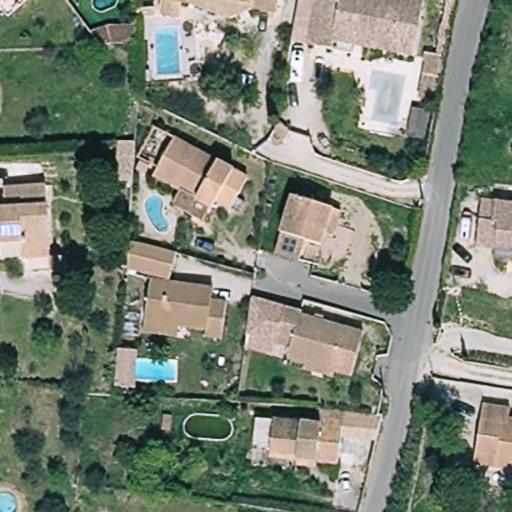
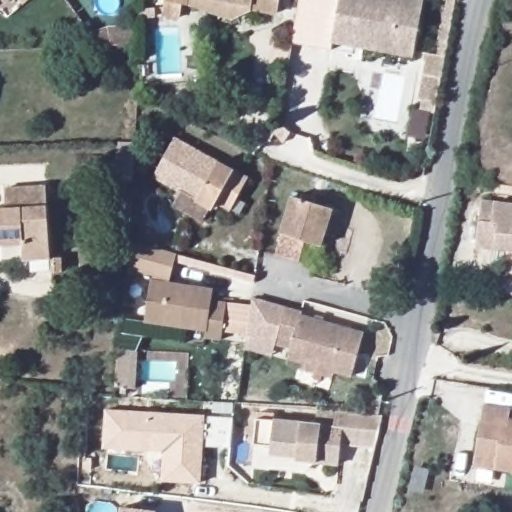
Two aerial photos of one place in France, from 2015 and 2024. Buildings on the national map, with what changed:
unchanged [(1,0),(12,0),(5,5),(2,0),(0,2),(0,0),(1,0)]
unchanged [(183,19),(167,14),(170,0),(195,0),(194,5),(187,3),(183,19)]
unchanged [(252,7),(221,0),(283,0),(279,19),(251,13),(252,7)]
unchanged [(341,4),(342,0),(399,0),(426,5),(415,59),(372,50),(374,40),(334,32),(332,43),(329,55),(308,51),(319,1),(341,4)]
new [(406,135),(424,75),(427,53),(435,55),(439,42),(449,45),(421,140),(406,135)]
unchanged [(231,205),(218,199),(211,210),(178,191),(184,181),(157,165),(173,135),(247,177),(231,205)]
unchanged [(49,260),(25,261),(24,244),(0,245),(0,211),(7,211),(7,190),(47,189),(49,260)]
unchanged [(276,244),(282,227),(295,189),(343,206),(337,220),(328,218),(321,241),(306,236),(301,251),(276,244)]
unchanged [(474,241),(479,202),(481,192),(512,197),(512,261),(489,257),(491,244),(474,241)]
unchanged [(187,257),(183,275),(138,270),(142,244),(187,257)]
unchanged [(137,330),(139,315),(146,279),(137,277),(138,270),(183,275),(181,283),(207,289),(207,298),(224,301),(218,337),(198,334),(198,326),(174,322),(172,336),(137,330)]
unchanged [(298,373),(301,365),(281,360),(285,350),(270,345),(267,355),(244,349),(245,336),(250,300),(282,310),(297,315),(296,318),(362,339),(349,380),(330,375),(327,383),(298,373)]
unchanged [(132,342),(131,377),(117,377),(117,358),(118,342),(132,342)]
new [(202,482),(162,480),(163,452),(102,449),(105,409),(206,415),(202,482)]
unchanged [(342,470),(306,466),(307,459),(276,456),(277,448),(256,446),(258,416),(328,422),(329,409),(350,411),(342,470)]
unchanged [(478,460),(483,410),(499,412),(511,413),(510,427),(512,427),(512,475),(500,473),(492,472),(477,471),(478,460)]
new [(157,512),(121,512),(122,506),(157,510),(157,512)]

